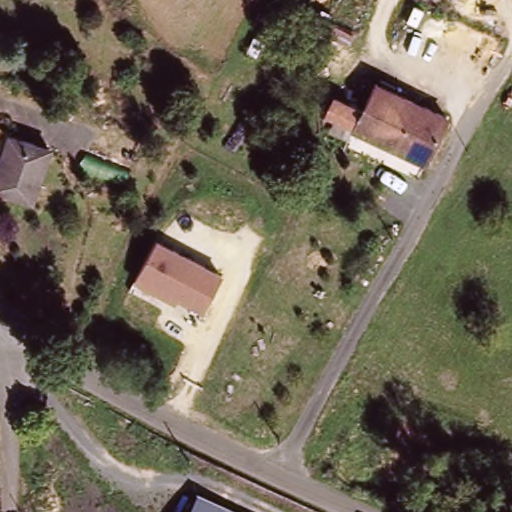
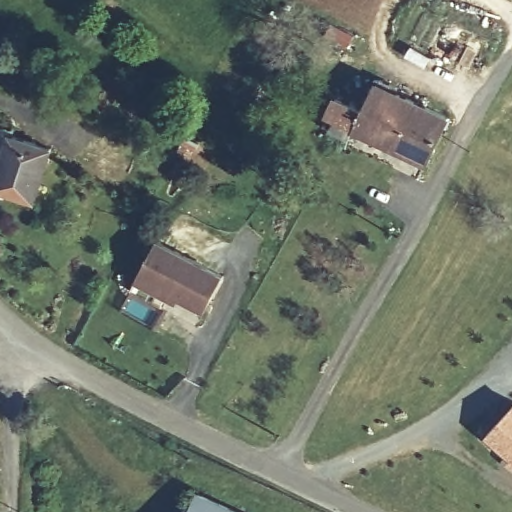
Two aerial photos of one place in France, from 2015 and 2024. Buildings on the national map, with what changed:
unchanged [(326,115),(336,91),(364,105),(377,80),(447,117),(422,164),(352,127),(326,115)]
unchanged [(46,149),(26,197),(0,186),(0,165),(12,136),(46,149)]
unchanged [(227,272),(207,310),(182,298),(179,304),(136,282),(159,237),(227,272)]
new [(512,407),(512,459),(486,436),(512,407)]
unchanged [(243,512),(194,512),(202,494),(243,512)]

